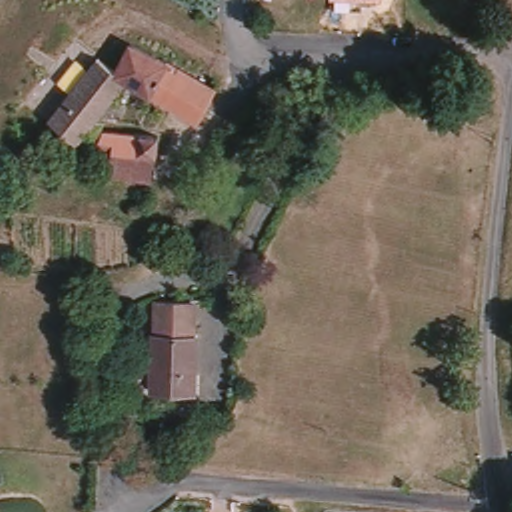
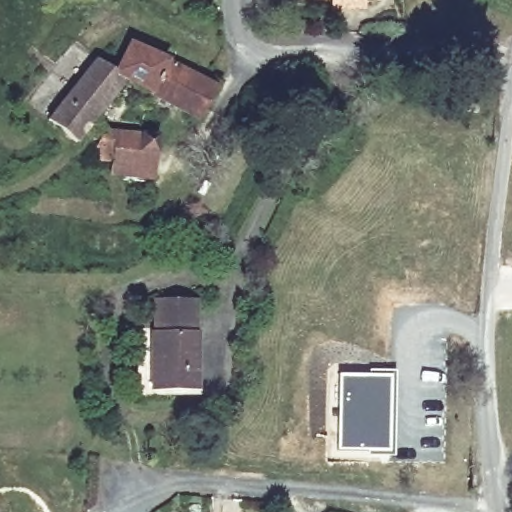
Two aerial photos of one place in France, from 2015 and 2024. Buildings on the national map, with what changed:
unchanged [(118,76),(131,50),(214,91),(201,123),(128,88),(81,150),(50,129),(97,66),(118,76)]
unchanged [(159,156),(155,156),(151,199),(128,197),(129,182),(113,179),(113,166),(100,165),(101,152),(96,150),(106,133),(160,138),(159,156)]
unchanged [(155,335),(157,313),(157,303),(195,306),(195,317),(193,338),(196,338),(192,395),(155,393),(150,392),(155,392),(153,335),(155,335)]
new [(338,372),(394,369),(392,454),(336,452),(338,372)]

